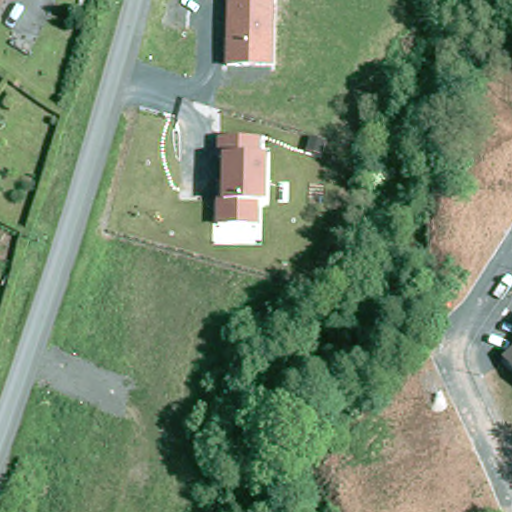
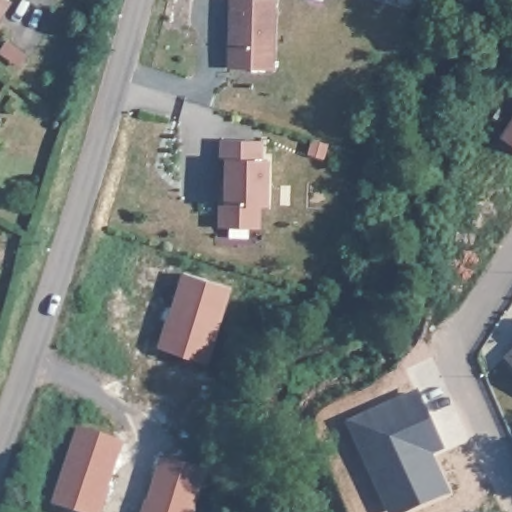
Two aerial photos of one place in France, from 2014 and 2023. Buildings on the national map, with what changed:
unchanged [(0,25),(0,0),(9,0),(14,3),(0,25)]
unchanged [(226,66),(229,0),(277,0),(274,67),(226,66)]
new [(500,136),(512,116),(512,144),(500,136)]
unchanged [(262,140),(261,225),(215,223),(217,137),(262,140)]
new [(184,271),(230,286),(207,361),(162,345),(184,271)]
unchanged [(504,357),(512,348),(512,367),(504,357)]
new [(347,421),(418,388),(446,449),(434,454),(451,493),(411,512),(388,512),(347,421)]
new [(77,426),(122,440),(99,512),(82,512),(54,503),(77,426)]
new [(165,457),(206,469),(193,512),(147,512),(165,457)]

